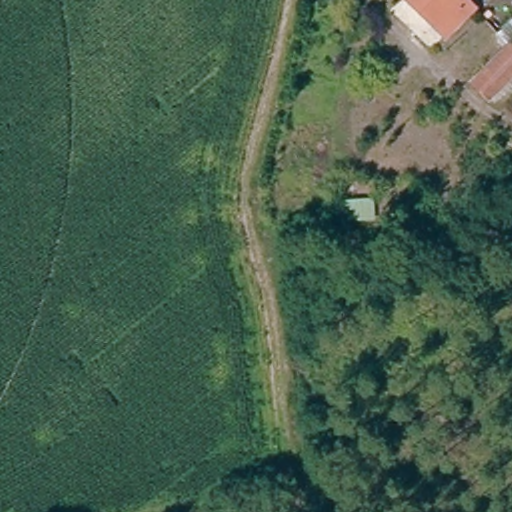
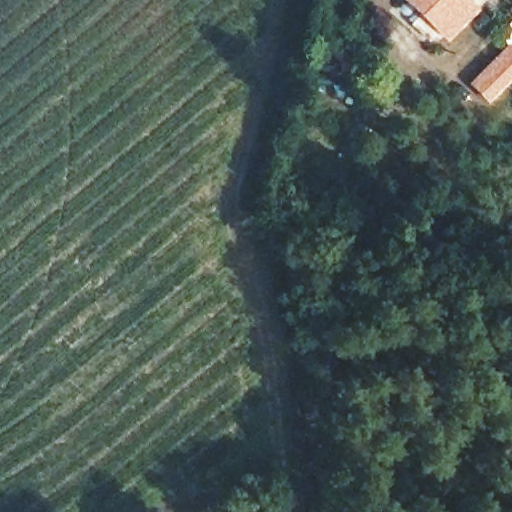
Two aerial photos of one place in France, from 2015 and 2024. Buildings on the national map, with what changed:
unchanged [(403,0),(487,0),(447,42),(403,0)]
unchanged [(506,48),(495,34),(512,20),(512,82),(511,82),(512,83),(512,103),(500,115),(469,84),(506,48)]

